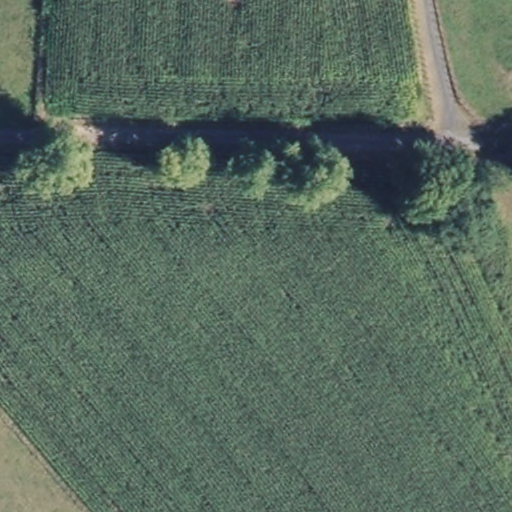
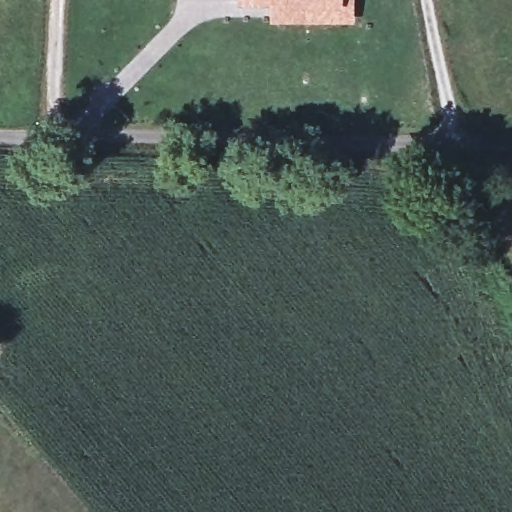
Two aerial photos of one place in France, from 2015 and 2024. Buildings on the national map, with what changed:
new [(240,6),(240,0),(347,0),(347,22),(317,22),(292,22),(272,22),(272,6),(240,6)]

